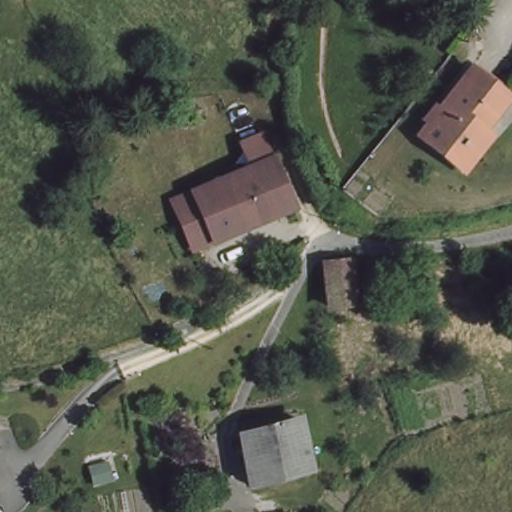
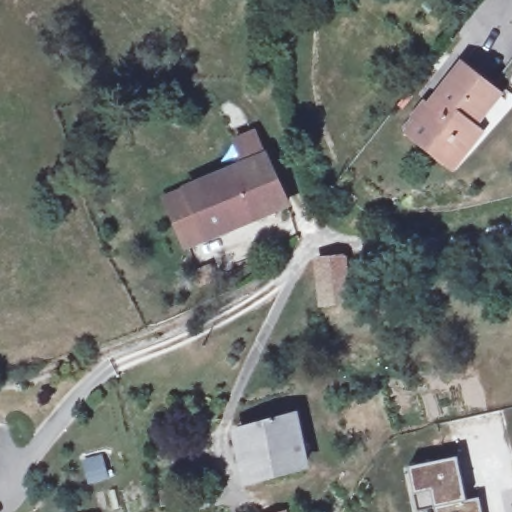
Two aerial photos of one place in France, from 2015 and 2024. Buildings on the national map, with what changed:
unchanged [(463,154),(449,173),(403,138),(411,128),(404,121),(419,101),(426,108),(459,68),(497,96),(470,130),(477,136),(463,154)]
unchanged [(228,149),(246,141),(257,165),(279,212),(200,247),(179,198),(239,173),(228,149)]
unchanged [(200,247),(183,255),(160,206),(179,198),(200,247)]
unchanged [(344,313),(315,313),(313,269),(341,269),(344,313)]
unchanged [(291,423),(305,472),(250,485),(237,437),(291,423)]
new [(458,463),(465,503),(479,501),(481,512),(433,512),(432,506),(414,509),(408,470),(458,463)]

